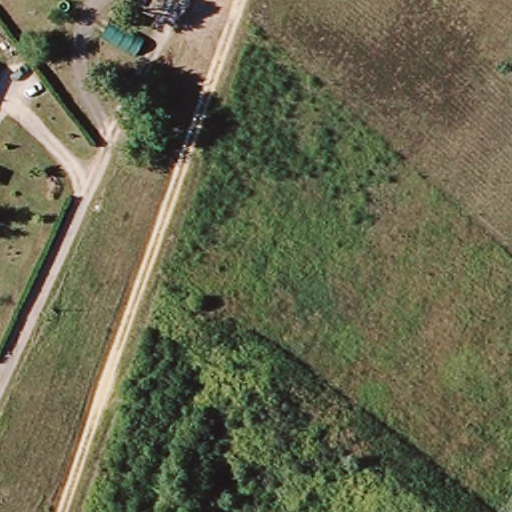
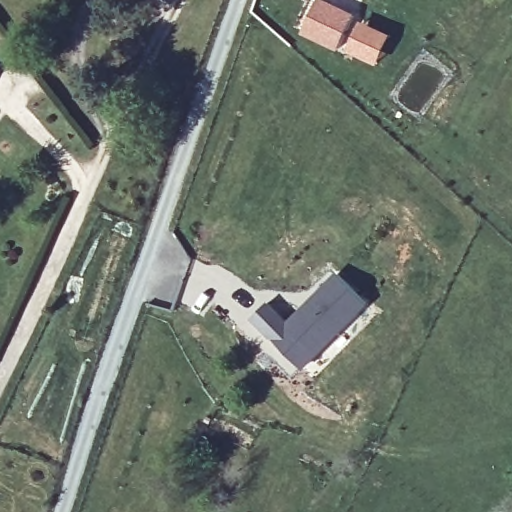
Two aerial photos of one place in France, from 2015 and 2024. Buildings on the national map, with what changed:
new [(318,0),(323,0),(355,15),(341,46),(305,30),(318,0)]
new [(252,318),(270,302),(289,323),(338,274),(369,305),(305,369),(276,341),(252,318)]

